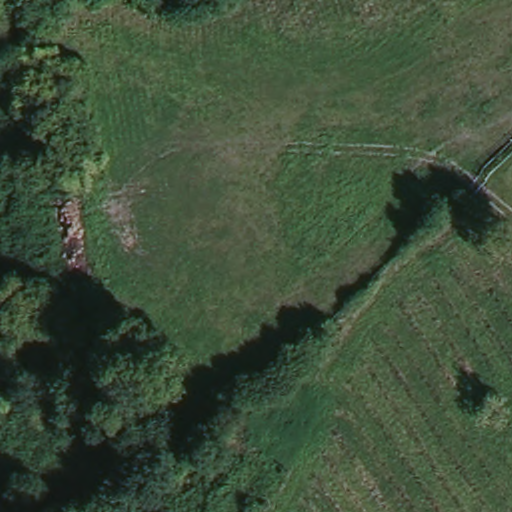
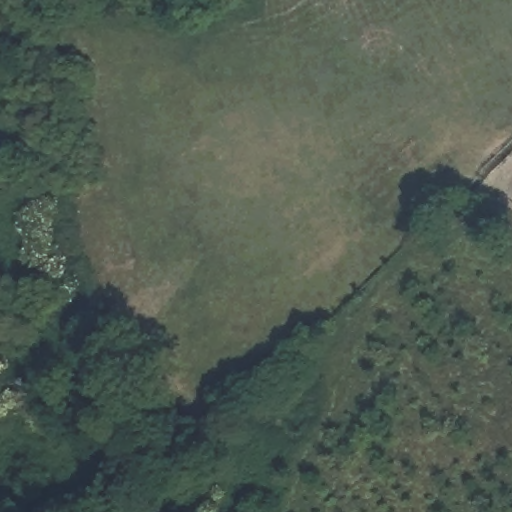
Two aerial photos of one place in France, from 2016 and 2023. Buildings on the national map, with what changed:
[]

